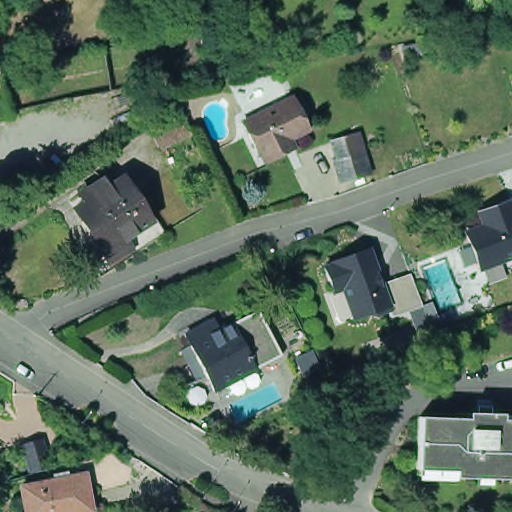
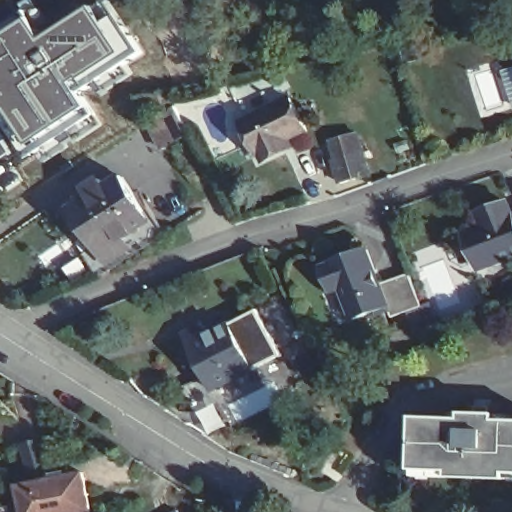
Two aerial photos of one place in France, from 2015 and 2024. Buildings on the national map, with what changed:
new [(2,25),(4,28),(28,16),(20,4),(26,0),(35,0),(43,11),(34,18),(47,36),(103,0),(107,0),(142,52),(113,74),(84,93),(97,115),(60,142),(27,160),(0,117),(0,27),(2,25)]
unchanged [(293,148),(263,162),(262,158),(259,154),(255,155),(240,121),(289,97),(306,131),(288,140),(290,144),(293,148)]
unchanged [(175,106),(190,133),(164,147),(149,121),(175,106)]
unchanged [(338,179),(332,154),(335,154),(331,138),(360,131),(364,146),(370,170),(338,179)]
new [(8,152),(0,158),(0,140),(8,152)]
unchanged [(106,262),(92,240),(72,209),(83,202),(78,194),(102,180),(107,187),(122,177),(142,209),(149,220),(137,229),(123,237),(130,246),(106,262)]
unchanged [(479,210),(512,199),(512,262),(480,273),(467,229),(482,224),(479,210)]
unchanged [(385,282),(413,273),(424,308),(358,328),(347,294),(333,296),(327,268),(373,247),(385,282)]
unchanged [(192,346),(187,337),(212,324),(217,333),(230,327),(242,352),(268,338),(280,363),(255,376),(252,370),(214,389),(207,376),(197,381),(182,351),(192,346)]
unchanged [(508,478),(455,475),(455,471),(417,469),(418,417),(467,419),(467,413),(501,415),(501,420),(512,420),(512,473),(509,473),(508,478)]
unchanged [(57,475),(57,470),(75,466),(75,472),(90,469),(97,508),(85,510),(86,512),(31,512),(25,482),(57,475)]

